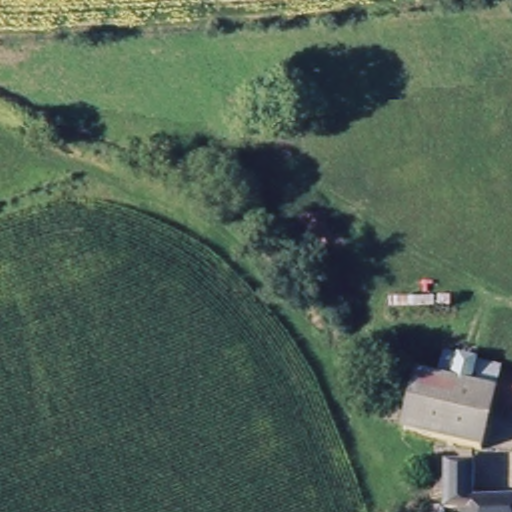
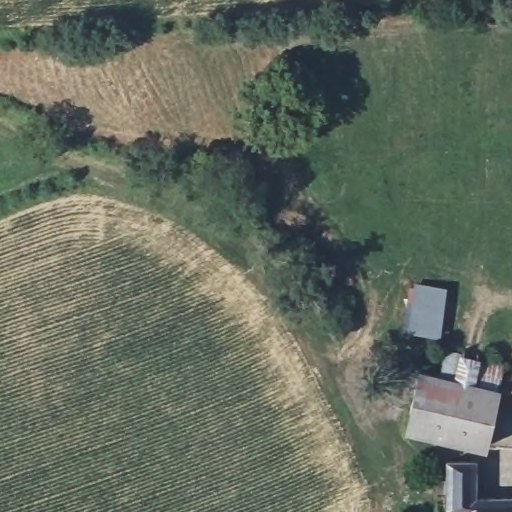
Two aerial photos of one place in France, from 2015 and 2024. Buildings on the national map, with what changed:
new [(413,283),(445,288),(438,341),(407,332),(413,283)]
unchanged [(497,367),(491,401),(483,445),(411,443),(428,355),(497,367)]
unchanged [(512,367),(512,401),(491,401),(497,367),(512,367)]
unchanged [(445,466),(476,465),(475,501),(475,512),(444,512),(445,466)]
unchanged [(475,501),(512,499),(512,512),(475,512),(475,501)]

